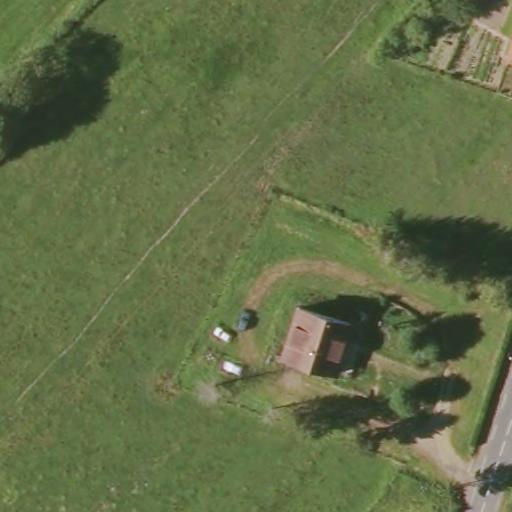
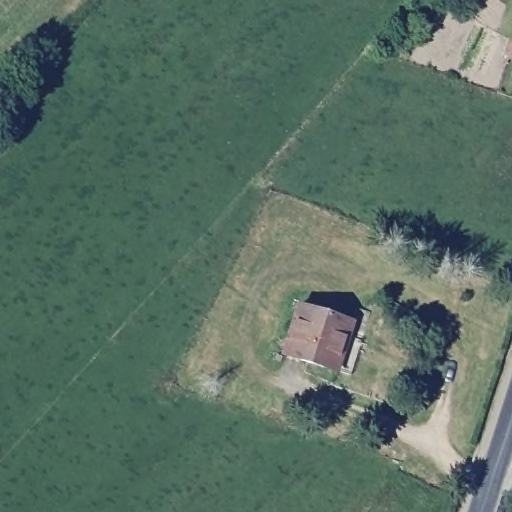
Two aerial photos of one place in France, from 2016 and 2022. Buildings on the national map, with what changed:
unchanged [(350,328),(335,376),(284,359),(299,311),(350,328)]

